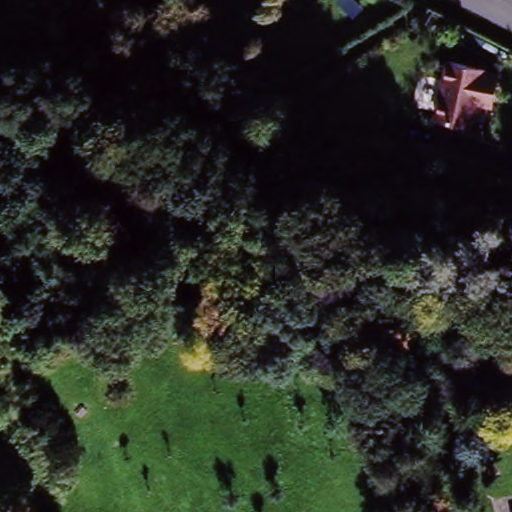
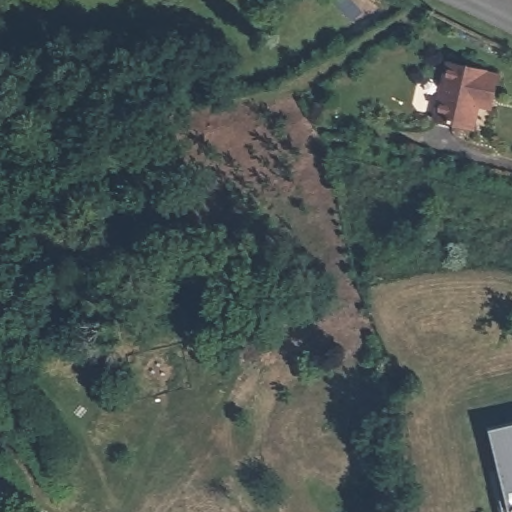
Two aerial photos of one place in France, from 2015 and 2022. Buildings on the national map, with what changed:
unchanged [(503,68),(497,90),(486,86),(477,119),(440,110),(453,56),(503,68)]
new [(511,511),(491,430),(512,425),(512,512),(511,512),(511,511)]

